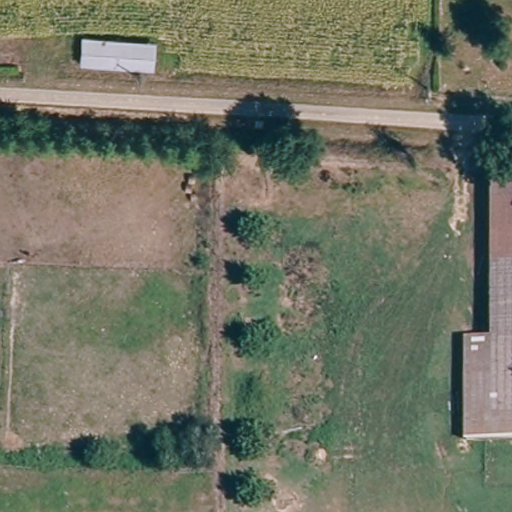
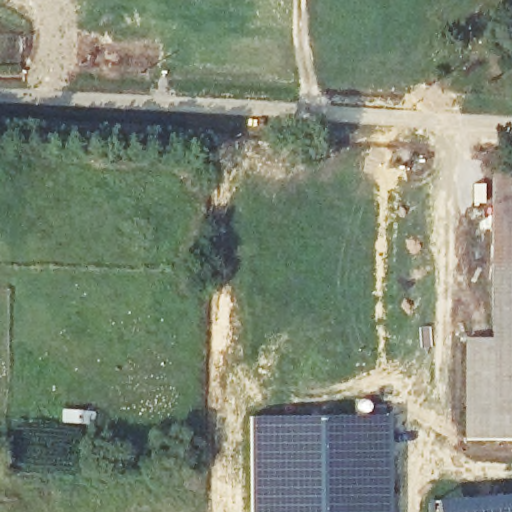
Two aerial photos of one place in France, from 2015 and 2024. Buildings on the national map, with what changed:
unchanged [(73,39),(153,43),(152,64),(72,60),(73,39)]
unchanged [(498,170),(512,170),(512,410),(496,410),(497,334),(498,170)]
unchanged [(471,334),(497,334),(496,410),(512,410),(512,435),(470,435),(471,334)]
new [(389,413),(390,512),(251,512),(250,416),(389,413)]
new [(512,494),(512,512),(436,512),(435,501),(512,494)]

